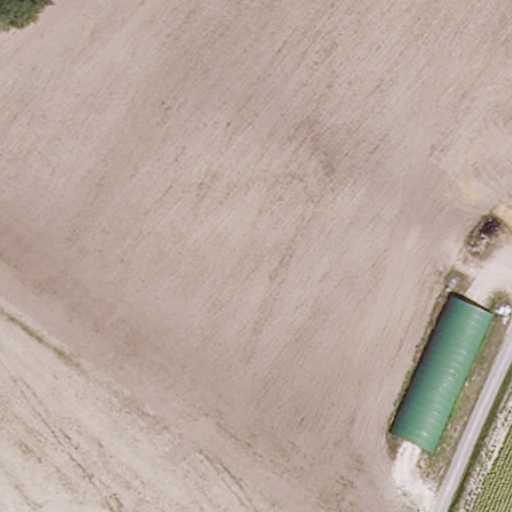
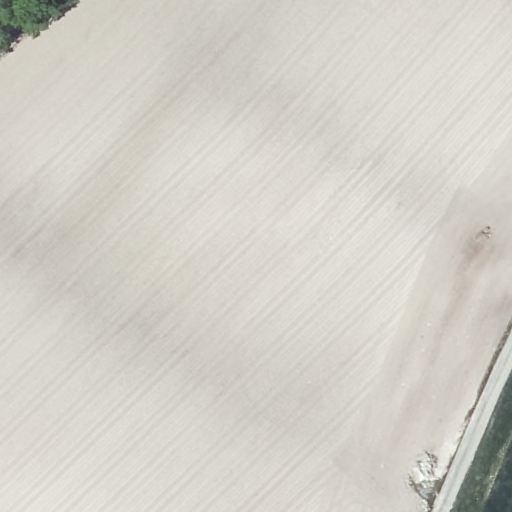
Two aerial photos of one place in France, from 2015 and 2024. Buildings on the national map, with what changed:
demolished [(458,295),(496,313),(434,452),(395,434),(458,295)]

